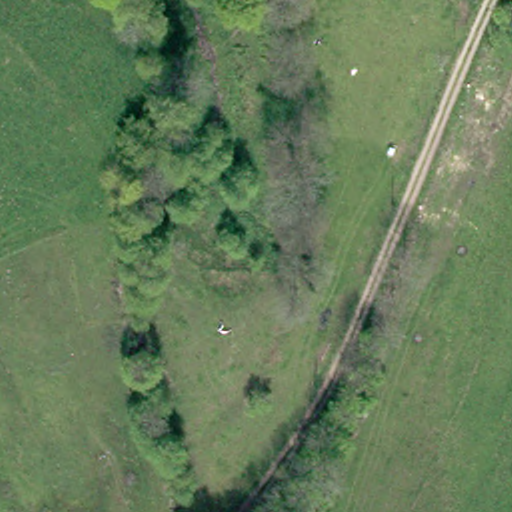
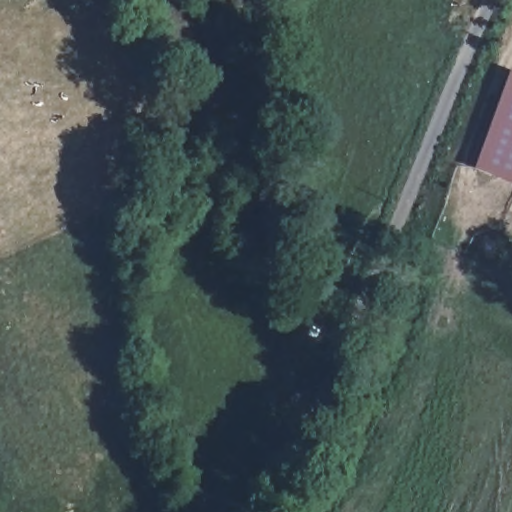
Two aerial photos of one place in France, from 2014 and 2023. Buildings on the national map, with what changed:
new [(512,73),(512,183),(476,170),(509,72),(512,73)]

